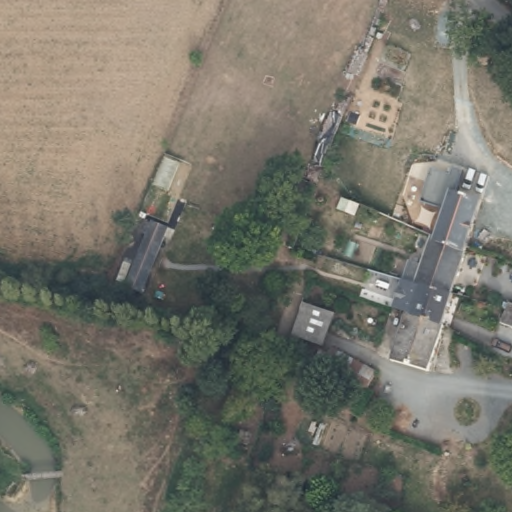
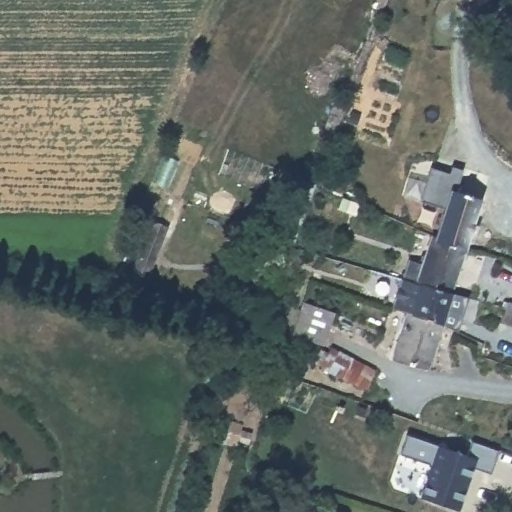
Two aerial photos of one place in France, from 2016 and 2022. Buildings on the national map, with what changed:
unchanged [(436,241),(433,239),(450,181),(480,190),(466,249),(436,241)]
unchanged [(439,285),(422,280),(433,239),(436,241),(466,249),(456,290),(439,285)]
unchanged [(131,244),(149,251),(138,282),(120,276),(131,244)]
unchanged [(408,306),(397,302),(404,275),(422,280),(439,285),(456,290),(449,319),(408,306)]
unchanged [(495,296),(499,297),(501,294),(512,297),(512,319),(490,313),(495,296)]
unchanged [(292,329),(305,300),(333,314),(323,340),(292,329)]
unchanged [(394,361),(408,306),(449,319),(437,372),(394,361)]
unchanged [(212,344),(226,346),(220,380),(207,378),(212,344)]
unchanged [(374,391),(314,361),(323,344),(382,374),(374,391)]
new [(419,498),(431,464),(400,454),(407,436),(437,446),(466,455),(472,441),(499,451),(492,473),(474,467),(459,511),(419,498)]

